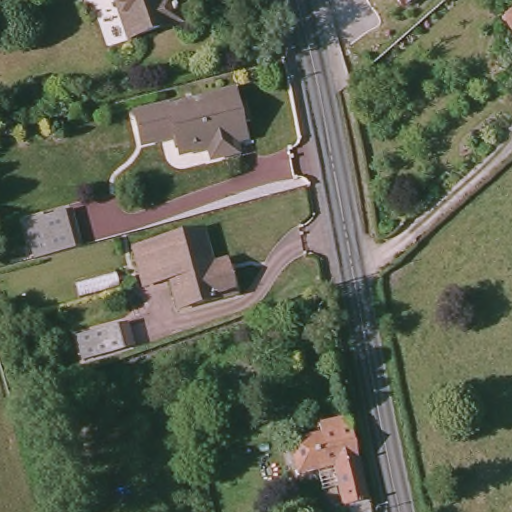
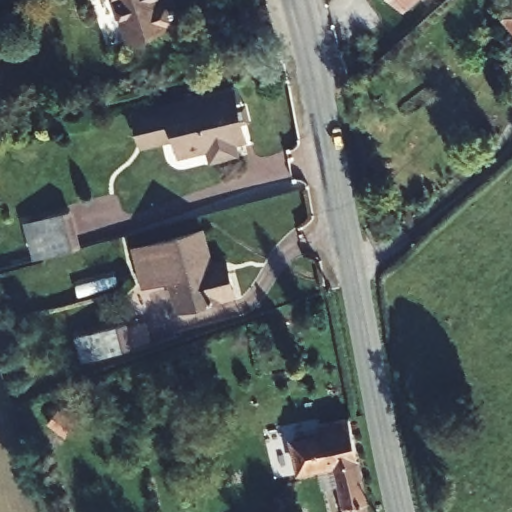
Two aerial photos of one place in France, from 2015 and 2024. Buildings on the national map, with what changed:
unchanged [(117,26),(108,0),(155,0),(157,5),(165,2),(174,28),(130,43),(123,45),(117,26)]
unchanged [(403,14),(391,0),(419,0),(403,14)]
unchanged [(512,12),(512,33),(501,21),(512,12)]
unchanged [(139,146),(136,139),(130,114),(165,105),(165,108),(230,92),(233,107),(241,105),(245,120),(237,121),(241,138),(230,141),(232,153),(209,159),(206,147),(177,155),(171,133),(150,139),(151,144),(139,146)]
unchanged [(69,210),(79,247),(35,259),(25,222),(69,210)]
unchanged [(173,315),(165,285),(138,291),(128,254),(197,235),(207,270),(221,266),(225,277),(230,300),(173,315)]
unchanged [(78,365),(71,341),(120,328),(126,353),(78,365)]
unchanged [(293,477),(292,475),(287,476),(280,447),(316,440),(314,429),(344,423),(352,465),(353,465),(363,507),(364,512),(338,512),(334,493),(316,496),(311,473),(293,477)]

